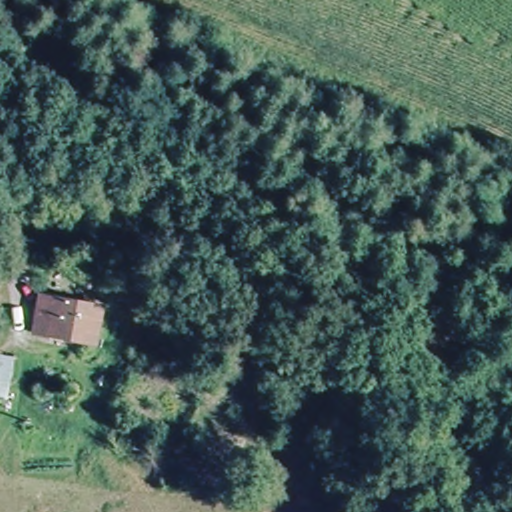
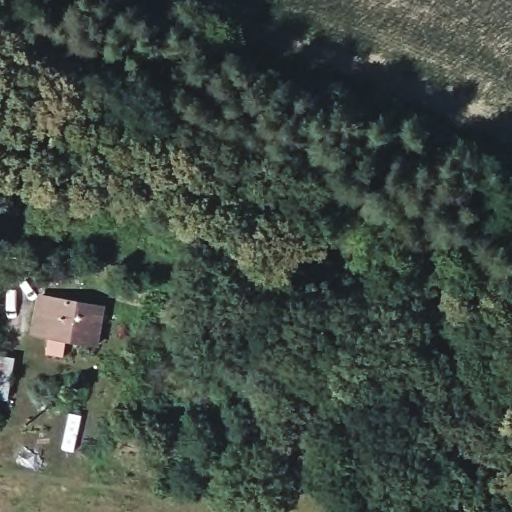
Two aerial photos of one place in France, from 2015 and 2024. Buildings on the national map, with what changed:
unchanged [(95,343),(36,332),(43,296),(101,307),(95,343)]
unchanged [(8,396),(0,395),(0,352),(14,354),(8,396)]

